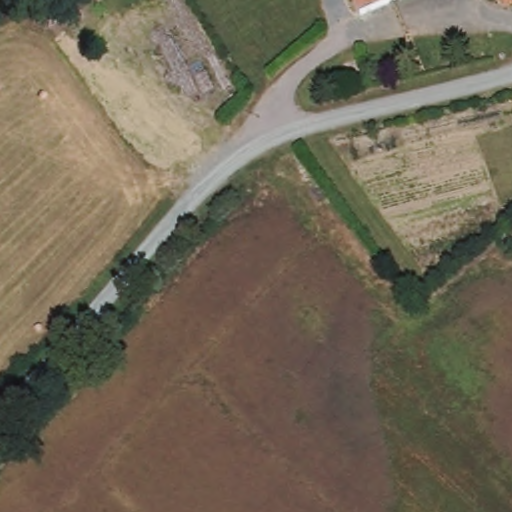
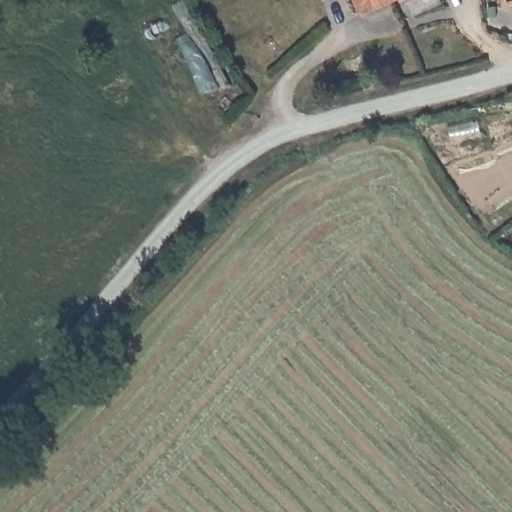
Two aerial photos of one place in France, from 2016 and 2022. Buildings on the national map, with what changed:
unchanged [(395,0),(361,15),(355,0),(395,0)]
unchanged [(501,0),(512,0),(512,7),(502,9),(501,0)]

